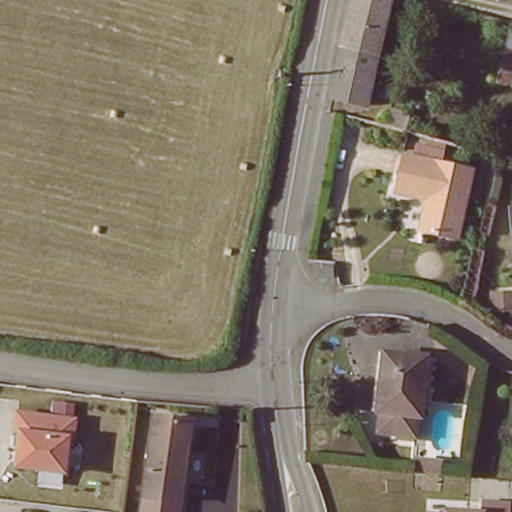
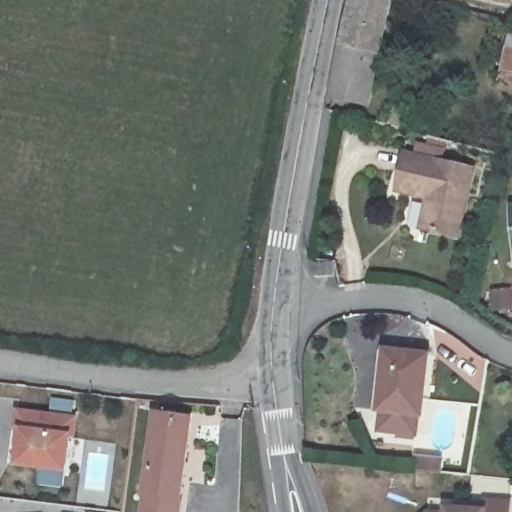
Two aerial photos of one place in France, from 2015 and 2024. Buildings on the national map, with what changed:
unchanged [(364,105),(327,95),(351,0),(384,0),(391,2),(364,105)]
unchanged [(498,0),(502,0),(502,1),(498,0)]
unchanged [(502,77),(512,40),(512,80),(502,77)]
unchanged [(474,172),(459,240),(420,232),(427,201),(396,194),(405,156),(474,172)]
unchanged [(507,207),(512,206),(512,247),(507,207)]
unchanged [(423,421),(419,440),(378,436),(378,415),(380,350),(429,353),(423,421)]
unchanged [(78,417),(74,435),(70,474),(17,468),(20,434),(12,433),(17,407),(78,417)]
unchanged [(200,419),(190,500),(188,512),(147,512),(150,495),(160,414),(200,419)]
unchanged [(429,509),(444,511),(444,506),(480,509),(482,497),(512,501),(511,512),(425,512),(429,509)]

